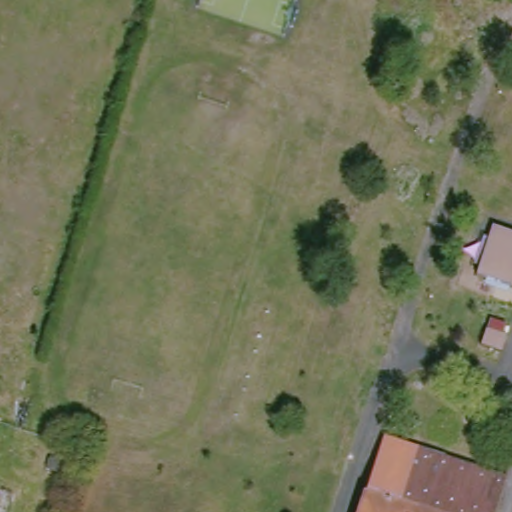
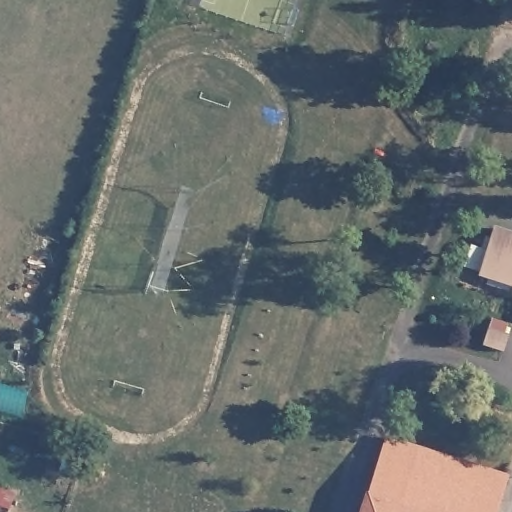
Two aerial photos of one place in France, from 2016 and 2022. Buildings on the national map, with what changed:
unchanged [(474,280),(493,222),(512,228),(512,293),(474,280)]
unchanged [(504,339),(499,355),(478,348),(483,332),(504,339)]
unchanged [(512,478),(500,512),(367,512),(373,492),(379,493),(396,441),(512,478)]

